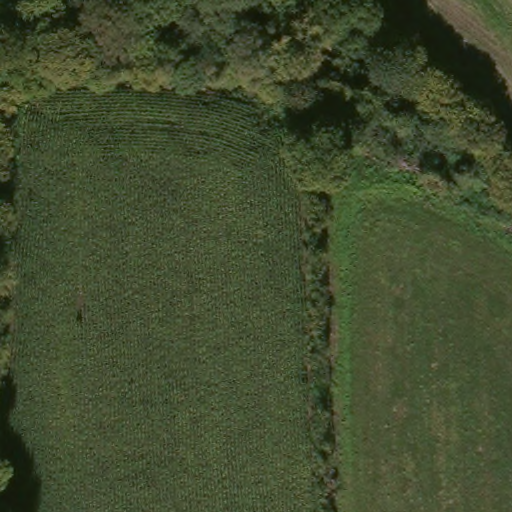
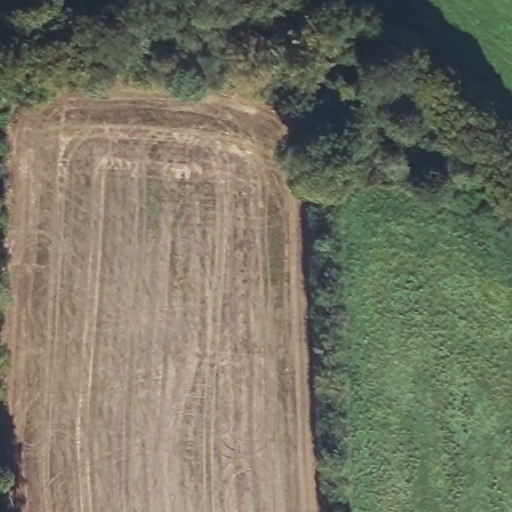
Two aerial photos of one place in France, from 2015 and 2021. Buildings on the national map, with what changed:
[]

